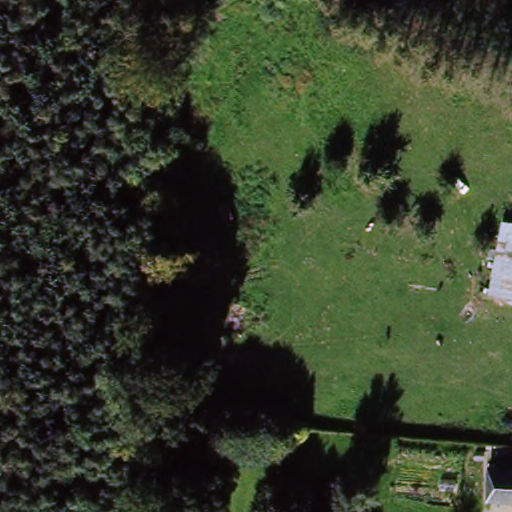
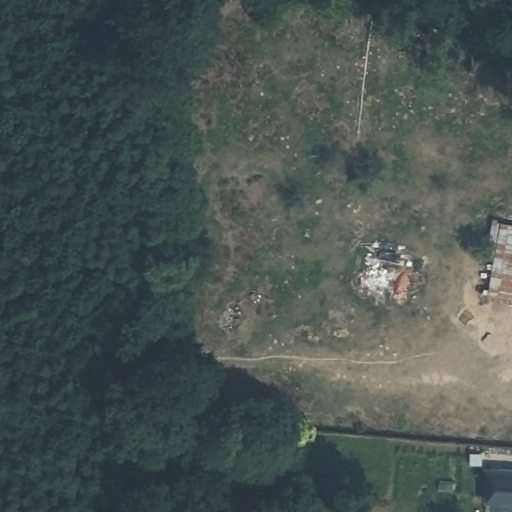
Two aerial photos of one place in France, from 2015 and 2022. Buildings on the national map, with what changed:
unchanged [(496,224),(512,227),(512,305),(485,301),(496,224)]
unchanged [(492,448),(512,454),(512,487),(484,478),(492,448)]

